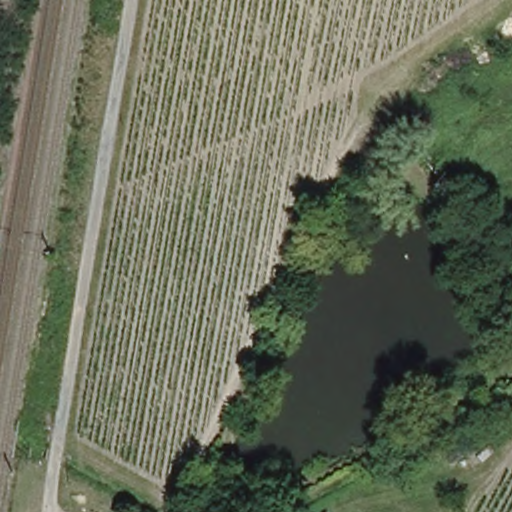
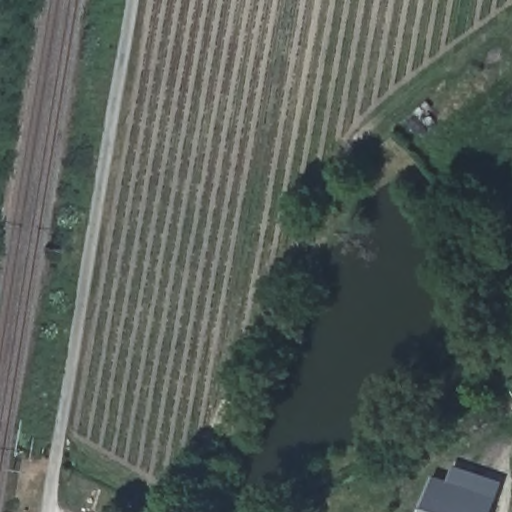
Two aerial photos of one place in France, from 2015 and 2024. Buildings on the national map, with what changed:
new [(492,512),(421,512),(433,475),(497,497),(492,512)]

